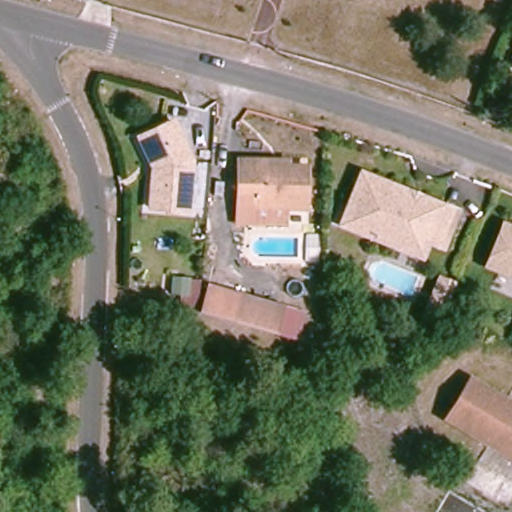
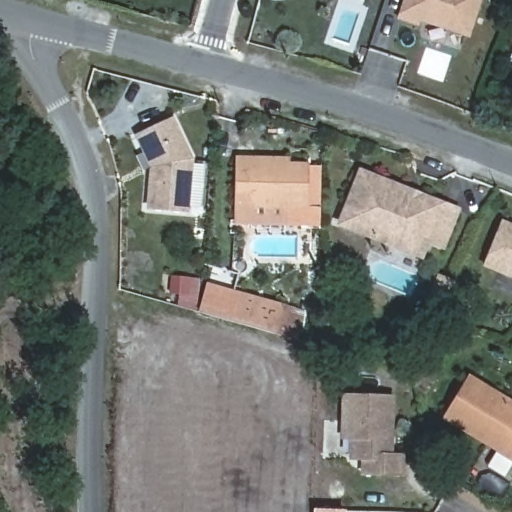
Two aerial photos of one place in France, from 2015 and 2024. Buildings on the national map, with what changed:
new [(396,20),(403,0),(482,0),(469,38),(420,22),(418,26),(396,20)]
unchanged [(189,207),(151,204),(154,165),(139,137),(172,119),(193,157),(189,207)]
unchanged [(305,212),(284,211),(284,225),(237,224),(239,164),(271,164),(286,164),(287,168),(307,169),(305,212)]
unchanged [(390,243),(340,222),(362,170),(414,192),(419,195),(457,211),(442,247),(427,241),(420,256),(390,243)]
unchanged [(486,263),(504,222),(512,225),(512,275),(486,263)]
unchanged [(438,324),(420,322),(440,275),(456,282),(438,324)]
unchanged [(292,338),(274,333),(230,321),(212,316),(200,312),(207,285),(213,287),(238,293),(282,306),(300,311),(292,338)]
unchanged [(444,419),(469,378),(512,405),(512,460),(444,419)]
new [(404,476),(361,476),(361,462),(349,462),(349,440),(341,440),(342,395),(393,395),(392,453),(404,453),(404,476)]

